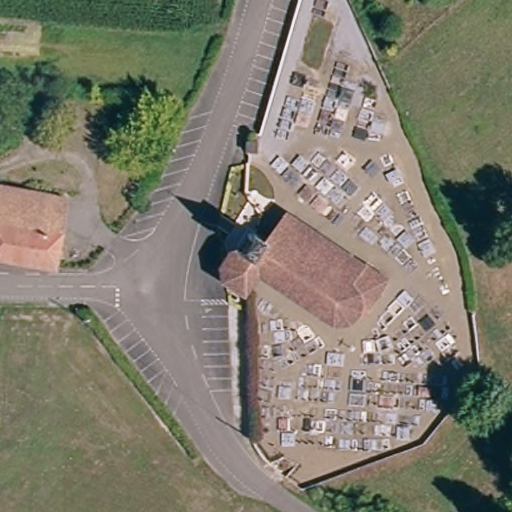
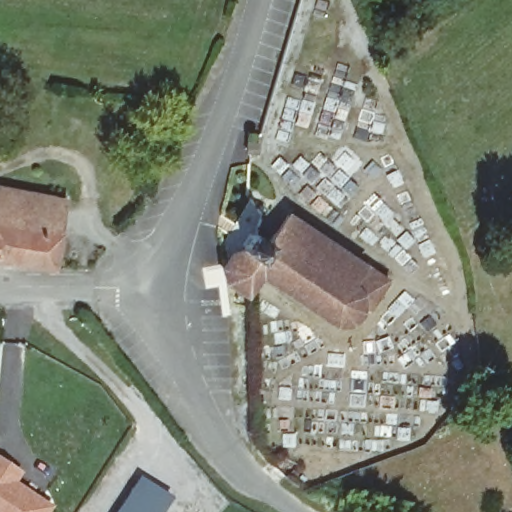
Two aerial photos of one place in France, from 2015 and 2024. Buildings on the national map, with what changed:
unchanged [(0,193),(65,199),(61,233),(0,228),(0,193)]
unchanged [(265,240),(285,214),(381,277),(357,314),(352,312),(345,322),(333,323),(256,277),(243,295),(222,284),(218,268),(231,251),(239,250),(251,232),(265,240)]
unchanged [(56,271),(0,265),(0,228),(61,233),(56,271)]
new [(17,476),(11,485),(5,481),(47,509),(46,512),(0,512),(0,465),(10,472),(17,476)]
new [(151,489),(168,500),(161,512),(118,512),(139,480),(151,489)]

